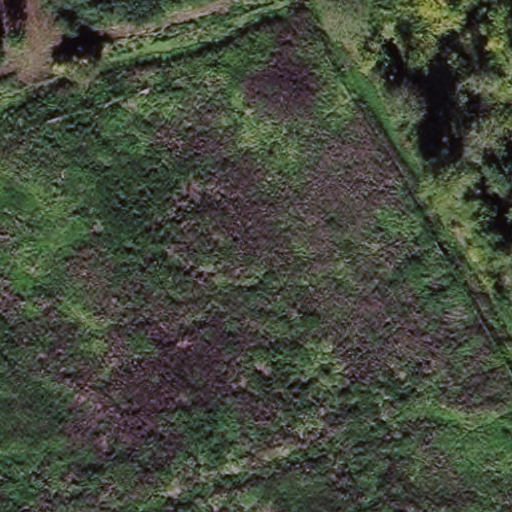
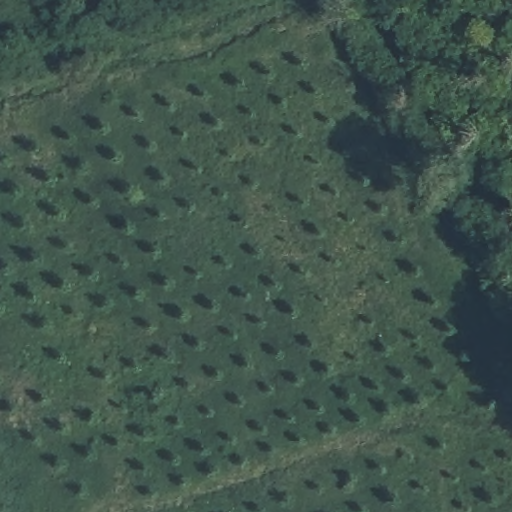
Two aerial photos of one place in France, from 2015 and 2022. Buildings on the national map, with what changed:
[]

